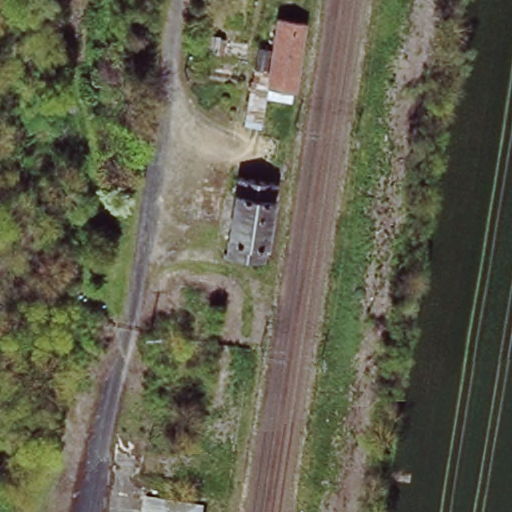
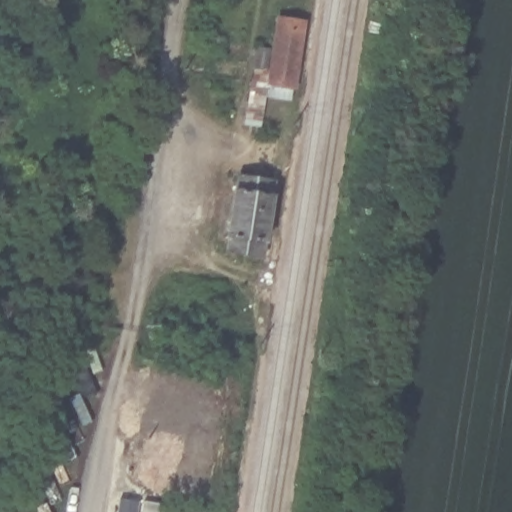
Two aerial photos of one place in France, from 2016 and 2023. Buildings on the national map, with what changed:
unchanged [(279,24),(303,28),(294,89),(270,85),(279,24)]
unchanged [(231,212),(240,181),(274,190),(266,249),(263,249),(261,261),(226,257),(231,212)]

